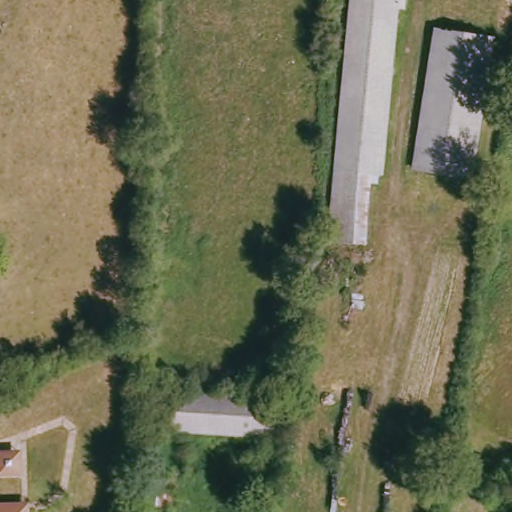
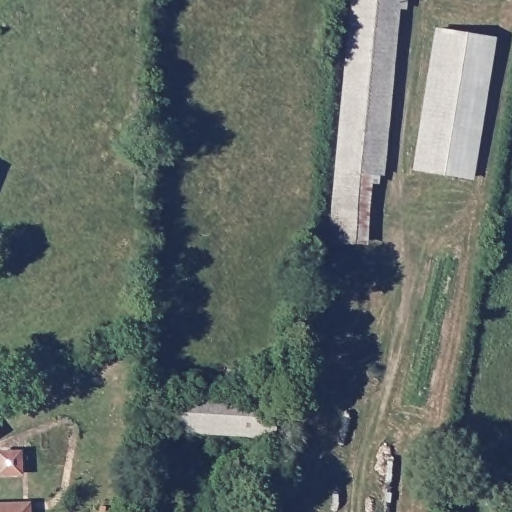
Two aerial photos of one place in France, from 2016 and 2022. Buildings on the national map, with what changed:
unchanged [(412,7),(404,10),(387,176),(384,178),(382,185),(377,186),(371,249),(332,245),(356,0),(412,0),(412,7)]
unchanged [(497,41),(474,179),(419,171),(441,32),(497,41)]
unchanged [(227,393),(227,398),(274,401),(274,410),(285,411),(283,441),(170,433),(174,390),(227,393)]
unchanged [(171,512),(143,512),(152,477),(177,482),(171,512)]
unchanged [(24,512),(0,512),(0,507),(24,507),(24,512)]

